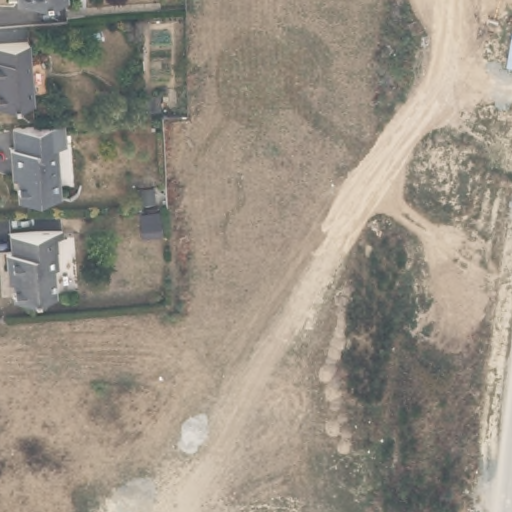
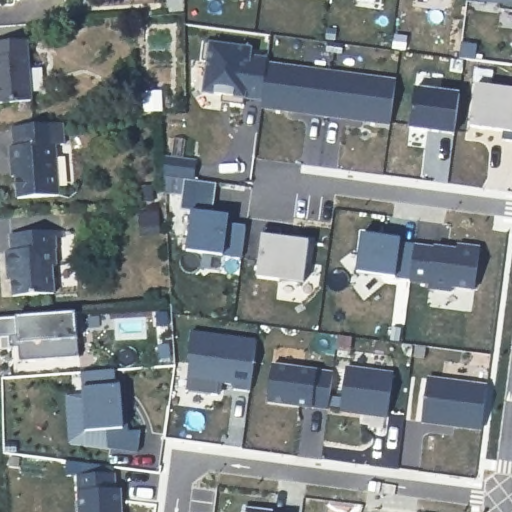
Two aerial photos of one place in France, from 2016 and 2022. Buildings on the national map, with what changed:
unchanged [(330,1),(326,0),(330,0),(330,1)]
new [(512,11),(500,10),(501,4),(485,1),(485,4),(466,2),(467,0),(512,0),(512,11)]
unchanged [(29,99),(0,100),(0,41),(26,40),(29,99)]
new [(204,42),(251,49),(250,56),(268,58),(267,64),(262,101),(245,98),(244,106),(221,102),(222,95),(204,93),(208,62),(202,61),(204,42)]
new [(262,101),(267,64),(331,72),(326,116),(261,107),(262,101)]
new [(331,72),(396,81),(390,124),(326,116),(331,72)]
new [(512,133),(470,127),(476,84),(512,88),(512,133)]
new [(455,135),(410,129),(414,87),(459,94),(455,135)]
unchanged [(159,99),(159,112),(144,112),(144,99),(159,99)]
unchanged [(14,201),(13,182),(9,182),(8,152),(11,149),(10,132),(63,129),(64,149),(53,150),(55,199),(14,201)]
new [(214,213),(229,216),(228,224),(246,226),(242,258),(223,257),(221,271),(203,268),(206,252),(187,251),(191,212),(181,211),(182,196),(167,194),(163,156),(197,160),(194,180),(218,183),(214,213)]
unchanged [(1,265),(0,246),(6,245),(5,229),(58,227),(58,230),(54,234),(53,261),(47,262),(48,287),(6,288),(5,269),(1,265)]
new [(356,230),(394,235),(393,240),(408,242),(404,276),(351,270),(356,230)]
new [(304,285),(256,278),(263,234),(310,241),(304,285)]
new [(456,247),(457,244),(479,246),(474,290),(451,287),(451,292),(429,288),(429,285),(410,283),(411,280),(403,279),(404,276),(408,242),(434,245),(456,247)]
new [(78,312),(79,331),(73,332),(75,357),(15,361),(14,347),(6,347),(0,347),(0,316),(78,312)]
new [(190,363),(189,350),(191,331),(256,340),(250,392),(234,390),(234,385),(219,383),(218,395),(186,391),(190,363)]
new [(272,366),(333,373),(328,409),(312,407),(312,408),(267,402),(272,366)]
new [(393,372),(388,418),(339,412),(345,366),(393,372)]
new [(114,368),(114,384),(119,383),(121,403),(126,403),(127,430),(139,430),(136,455),(103,450),(102,429),(82,430),(79,370),(114,368)]
new [(487,384),(481,432),(421,423),(427,376),(487,384)]
new [(121,489),(122,512),(78,512),(77,490),(79,490),(78,475),(116,473),(116,489),(121,489)]
new [(273,510),(273,512),(242,512),(242,507),(273,510)]

